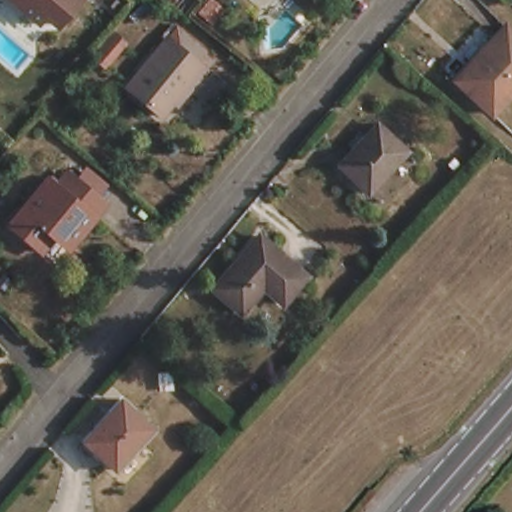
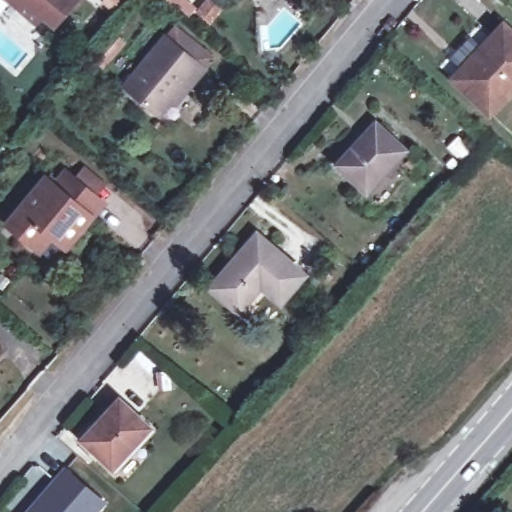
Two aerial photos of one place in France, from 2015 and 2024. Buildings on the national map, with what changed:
unchanged [(52,21),(40,12),(34,19),(19,6),(11,0),(69,0),(52,21)]
unchanged [(501,23),(512,33),(512,86),(491,110),(455,75),(501,23)]
unchanged [(87,53),(110,29),(125,42),(102,67),(87,53)]
unchanged [(192,81),(187,78),(157,114),(124,85),(167,37),(177,46),(185,36),(200,49),(192,59),(202,68),(192,81)]
unchanged [(375,122),(402,148),(366,189),(337,163),(375,122)]
unchanged [(80,247),(66,235),(50,254),(17,228),(55,183),(65,191),(75,178),(84,184),(94,171),(113,188),(104,201),(112,208),(80,247)]
unchanged [(282,301),(262,285),(242,310),(214,285),(258,236),(304,276),(282,301)]
unchanged [(124,388),(156,416),(107,469),(77,441),(124,388)]
new [(108,500),(99,512),(24,512),(64,465),(108,500)]

